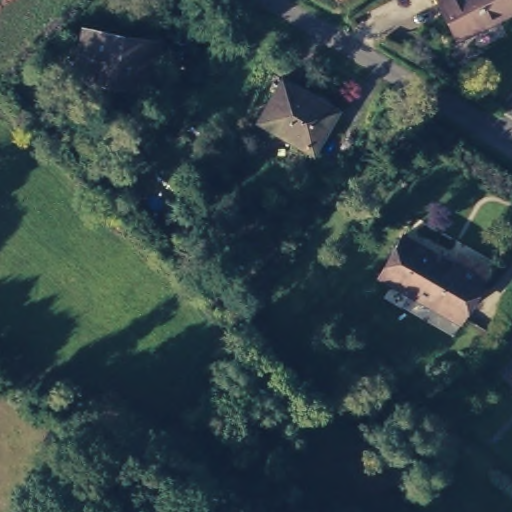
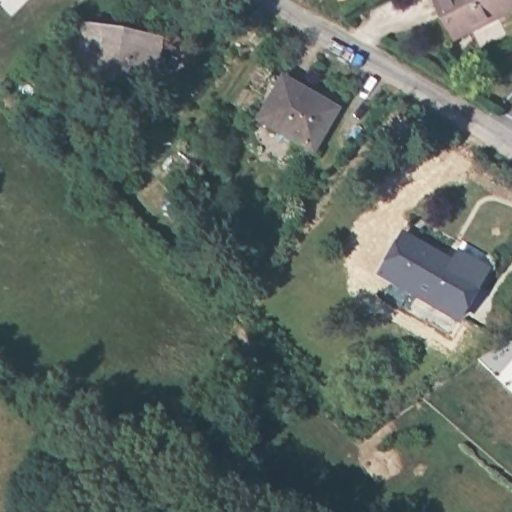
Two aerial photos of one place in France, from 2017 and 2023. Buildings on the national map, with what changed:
unchanged [(442,0),(512,0),(456,28),(442,0)]
unchanged [(81,74),(89,29),(163,43),(155,86),(81,74)]
unchanged [(257,120),(281,78),(337,110),(312,153),(257,120)]
unchanged [(436,302),(379,269),(402,230),(451,259),(457,248),(487,265),(458,315),(436,302)]

